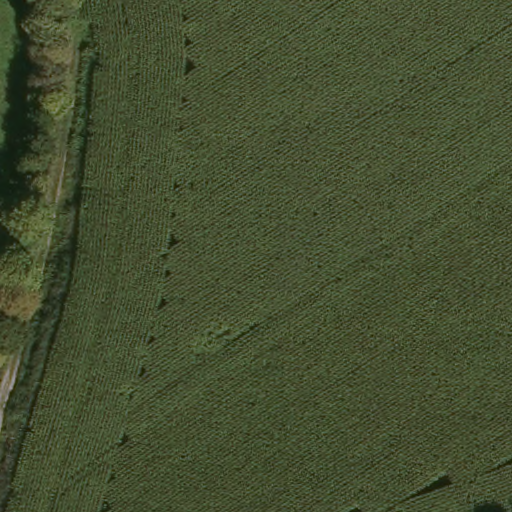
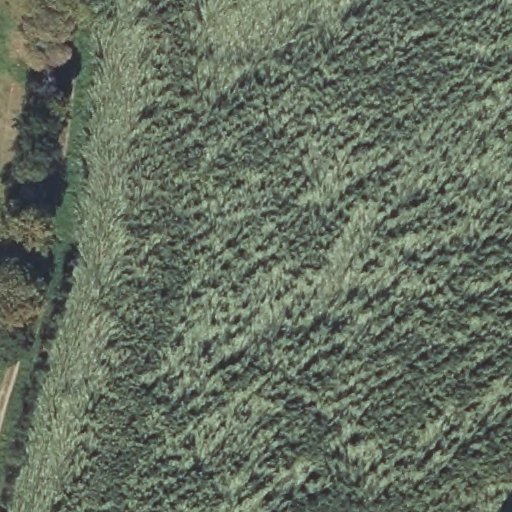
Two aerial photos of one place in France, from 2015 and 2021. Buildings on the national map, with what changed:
[]

